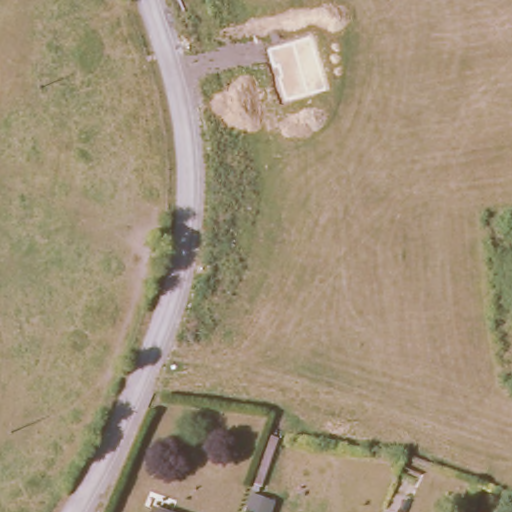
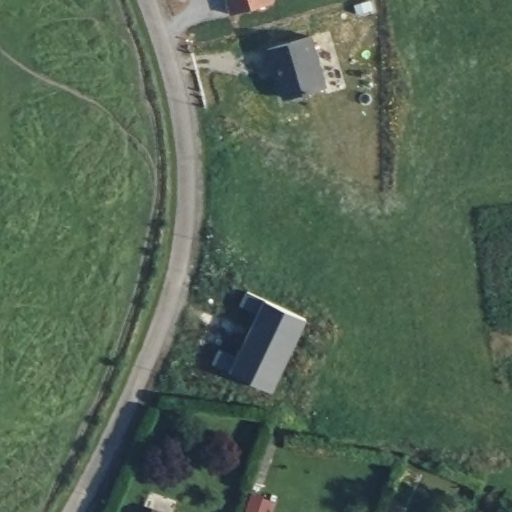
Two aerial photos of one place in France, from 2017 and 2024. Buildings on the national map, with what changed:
new [(234,18),(229,0),(273,0),(275,6),(234,18)]
unchanged [(311,36),(327,89),(283,100),(266,47),(311,36)]
new [(273,394),(228,372),(213,364),(220,349),(236,358),(257,314),(242,305),(248,292),(264,300),(308,320),(273,394)]
unchanged [(276,441),(259,488),(253,484),(269,439),(276,441)]
unchanged [(274,504),(271,512),(245,512),(251,496),(274,504)]

